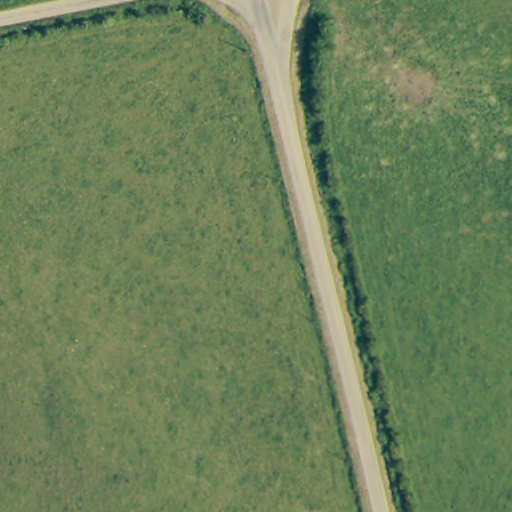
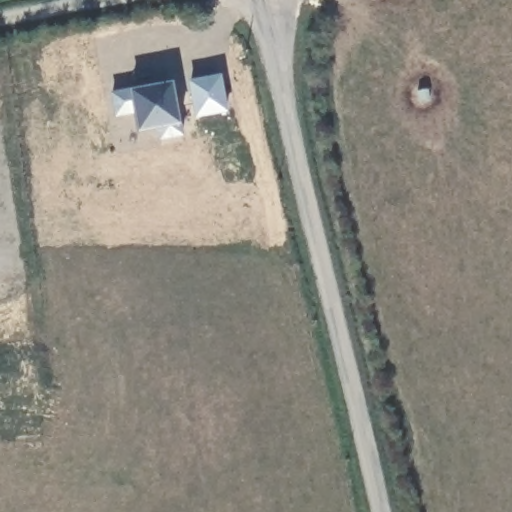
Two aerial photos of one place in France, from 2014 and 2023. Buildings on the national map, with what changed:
new [(225,78),(231,112),(201,118),(195,84),(225,78)]
new [(167,87),(167,89),(180,87),(189,136),(169,140),(167,129),(146,133),(141,114),(122,118),(119,96),(167,87)]

